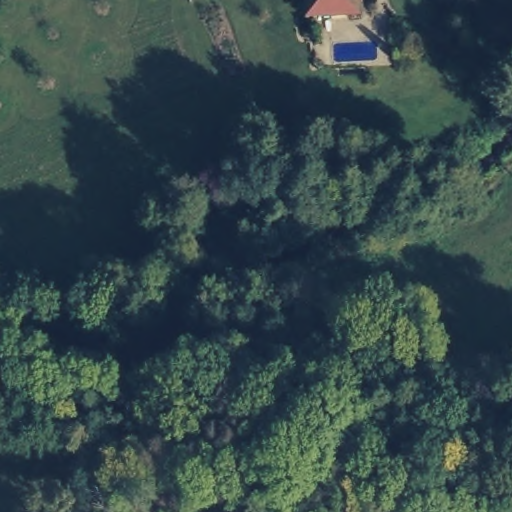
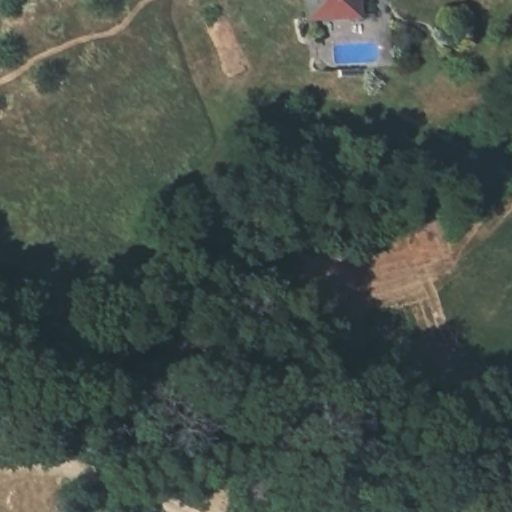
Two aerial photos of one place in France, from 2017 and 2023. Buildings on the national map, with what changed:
unchanged [(368,0),(367,23),(307,21),(306,0),(368,0)]

